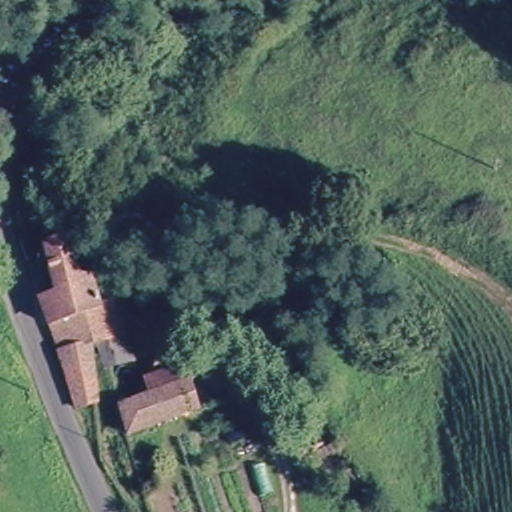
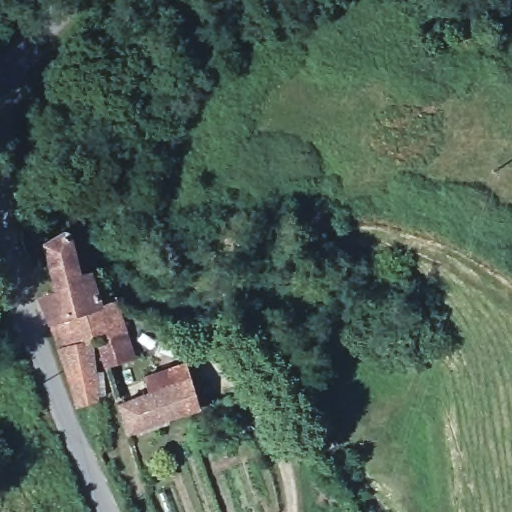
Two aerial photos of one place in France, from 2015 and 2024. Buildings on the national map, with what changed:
unchanged [(54,239),(81,260),(93,305),(45,318),(38,297),(50,293),(37,244),(54,239)]
unchanged [(93,305),(109,301),(117,299),(127,328),(110,331),(125,389),(83,398),(45,318),(93,305)]
unchanged [(126,437),(111,404),(140,395),(135,376),(180,359),(198,416),(126,437)]

